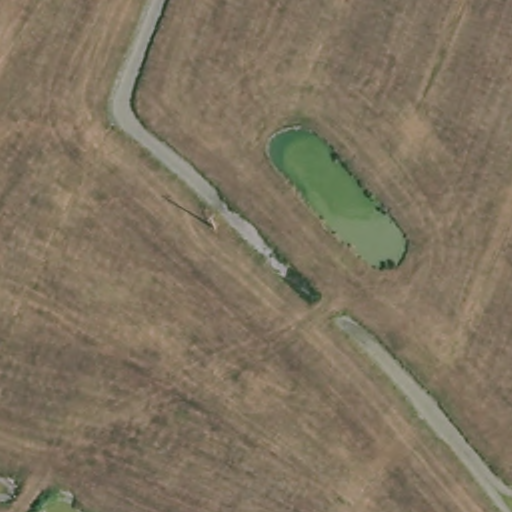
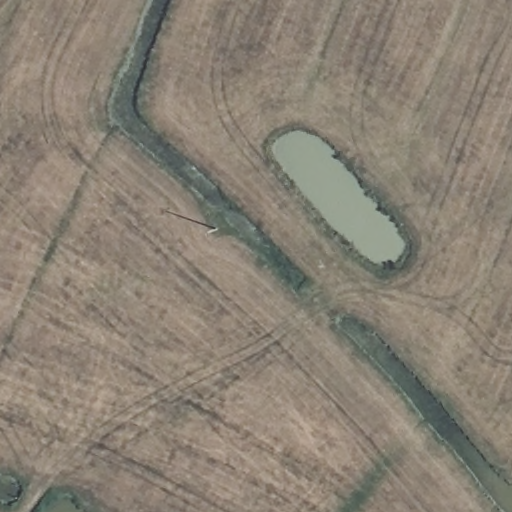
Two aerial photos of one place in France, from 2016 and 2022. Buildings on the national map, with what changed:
[]

